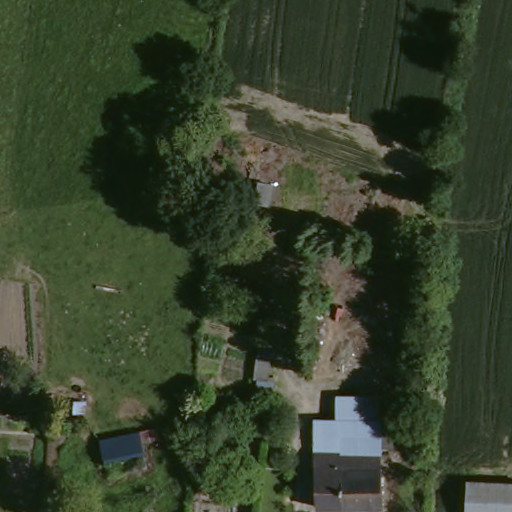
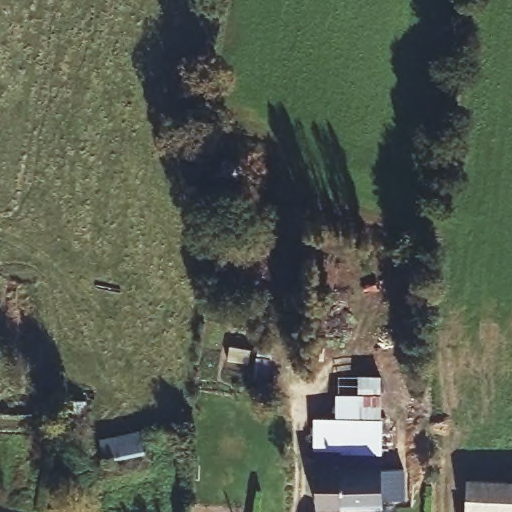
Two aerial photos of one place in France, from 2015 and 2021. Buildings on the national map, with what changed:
unchanged [(331,414),(332,394),(356,394),(357,415),(372,415),(373,448),(308,447),(307,414),(331,414)]
unchanged [(141,430),(155,427),(157,439),(142,440),(145,454),(105,462),(101,438),(141,430)]
unchanged [(373,448),(375,503),(310,505),(308,447),(373,448)]
unchanged [(472,512),(473,481),(512,482),(512,512),(472,512)]

